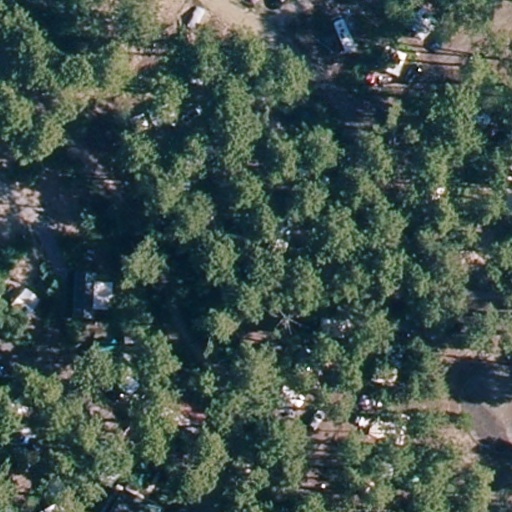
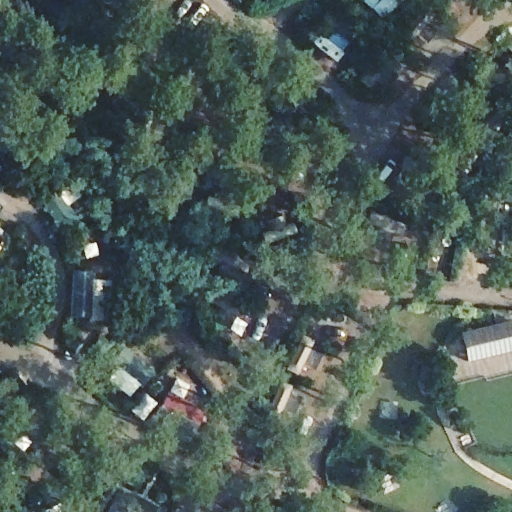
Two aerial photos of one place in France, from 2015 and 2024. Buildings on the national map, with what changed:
new [(462,332),(512,320),(512,351),(469,362),(462,332)]

